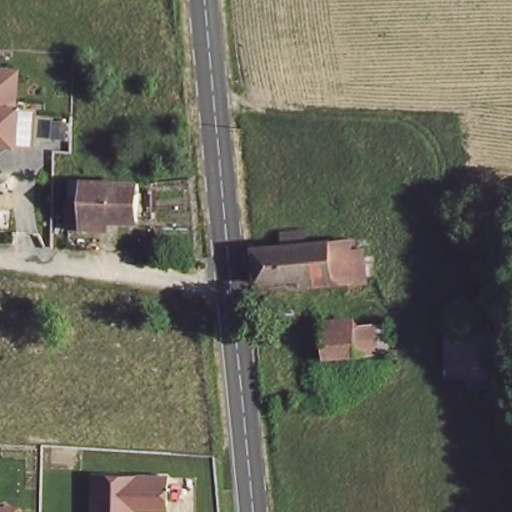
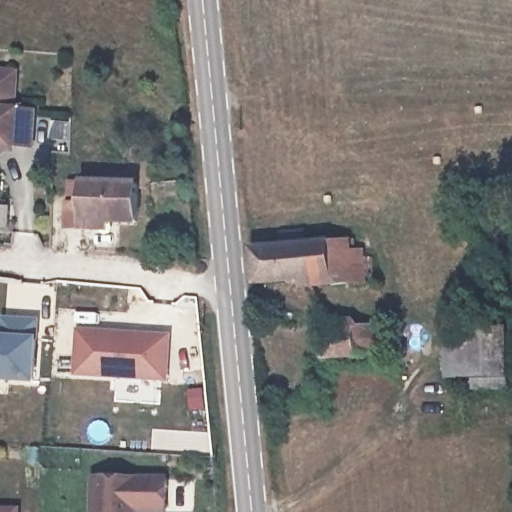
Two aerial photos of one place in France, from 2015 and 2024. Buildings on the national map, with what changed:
unchanged [(13,106),(35,107),(33,142),(0,140),(0,68),(15,69),(13,106)]
unchanged [(143,213),(122,213),(122,229),(79,227),(79,197),(91,199),(92,175),(143,177),(143,213)]
unchanged [(290,242),(290,228),(310,231),(311,241),(365,239),(366,262),(380,262),(382,281),(367,282),(367,284),(308,287),(308,280),(262,281),(258,243),(262,242),(290,242)]
unchanged [(398,355),(320,355),(322,328),(322,315),(360,315),(360,328),(399,328),(398,355)]
new [(0,318),(10,318),(28,320),(25,378),(0,377),(0,337),(10,337),(0,336),(0,318)]
new [(160,335),(157,377),(68,371),(70,329),(160,335)]
unchanged [(512,372),(512,382),(448,382),(443,330),(507,329),(512,372)]
unchanged [(164,468),(165,500),(135,502),(136,512),(94,512),(92,472),(164,468)]
unchanged [(13,512),(0,512),(0,508),(13,508),(13,512)]

